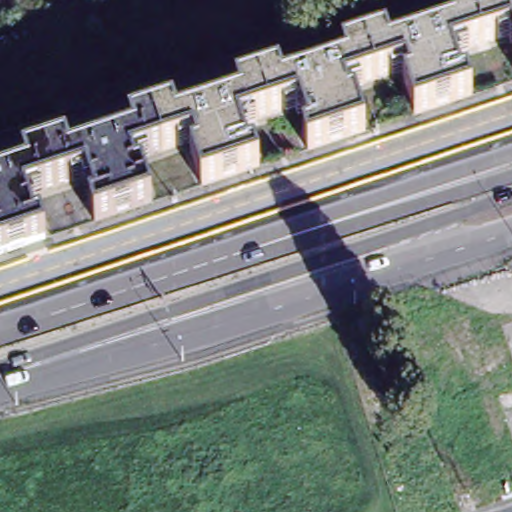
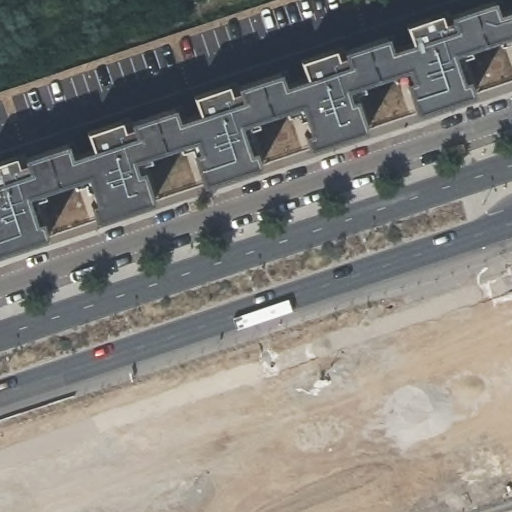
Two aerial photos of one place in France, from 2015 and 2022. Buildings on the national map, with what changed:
unchanged [(198,149),(194,137),(164,147),(152,112),(172,105),(177,118),(241,96),(237,84),(279,69),(284,82),(347,61),(342,48),(386,33),(391,47),(454,25),(450,12),(485,0),(493,0),(497,11),(512,6),(512,31),(453,52),(462,77),(467,76),(472,92),(416,112),(405,79),(410,77),(407,67),(346,87),(349,98),(355,96),(366,128),(352,132),(307,147),(302,131),(308,129),(300,102),(241,123),(249,149),(255,147),(260,164),(204,182),(193,150),(198,149)]
unchanged [(132,159),(136,170),(142,167),(153,200),(125,209),(96,219),(90,202),(96,201),(86,174),(27,194),(36,221),(41,219),(46,235),(39,237),(0,250),(0,177),(27,167),(22,155),(65,140),(70,153),(134,131),(130,120),(152,112),(164,147),(132,159)]

